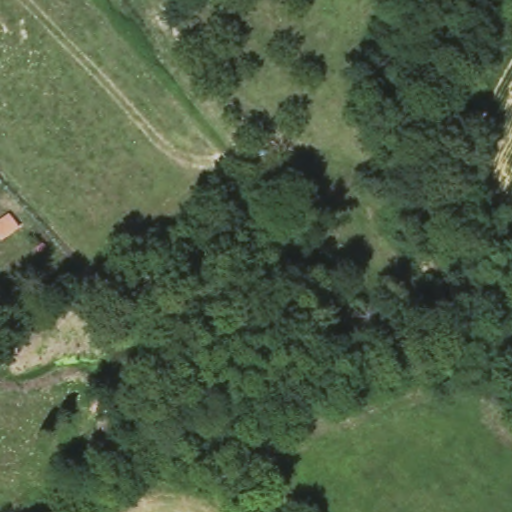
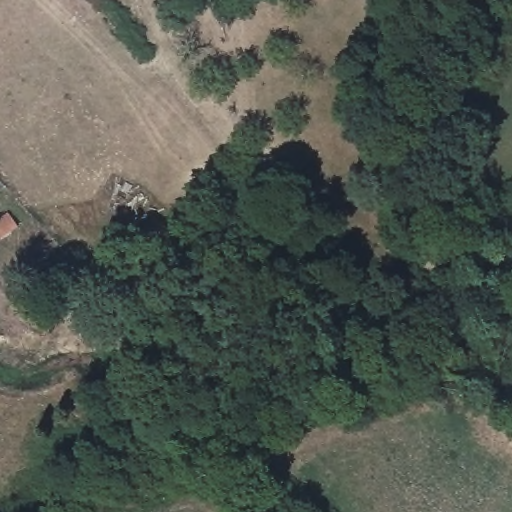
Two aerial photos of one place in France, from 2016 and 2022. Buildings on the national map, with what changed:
unchanged [(32,232),(9,247),(0,233),(0,221),(20,211),(32,232)]

